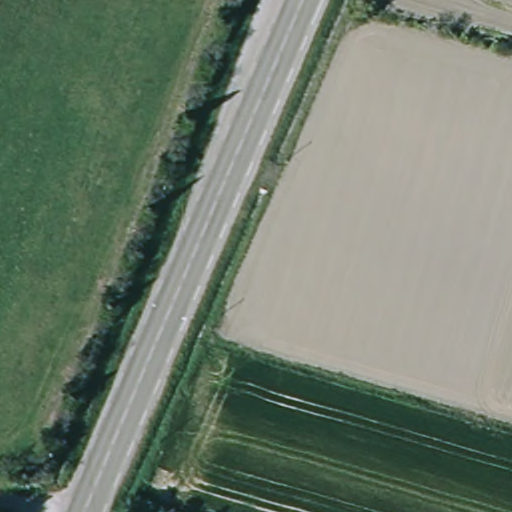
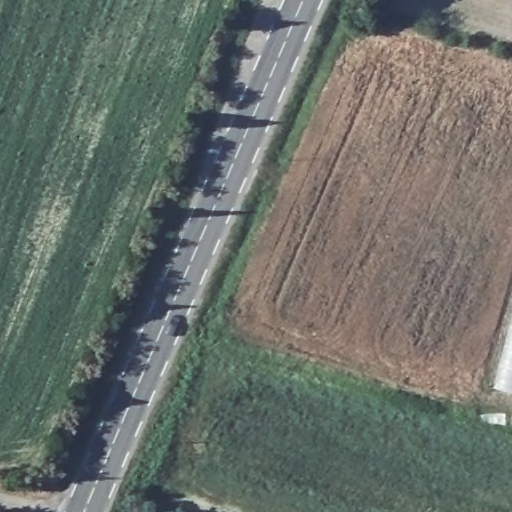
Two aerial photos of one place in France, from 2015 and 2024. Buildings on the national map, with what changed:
new [(512,324),(512,392),(495,388),(512,324)]

